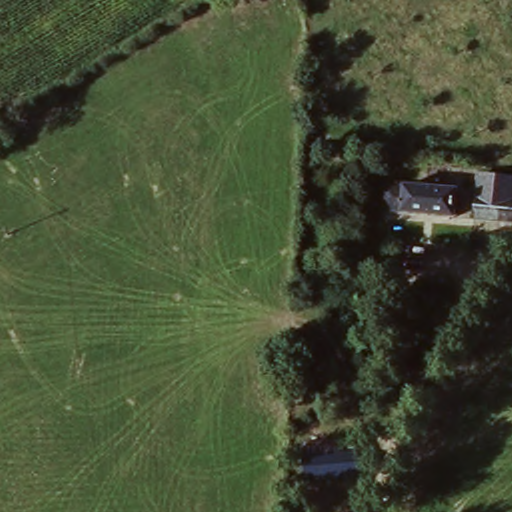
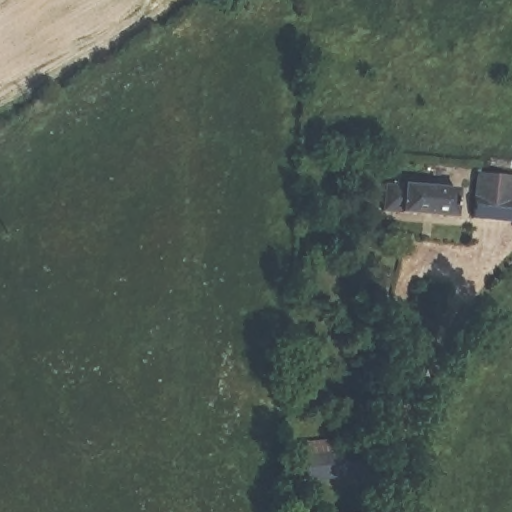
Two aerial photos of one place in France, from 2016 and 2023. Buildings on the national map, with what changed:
unchanged [(512,177),(512,200),(475,197),(477,175),(512,177)]
unchanged [(397,212),(380,211),(382,184),(451,190),(449,217),(397,212)]
unchanged [(475,197),(512,200),(512,221),(473,217),(475,197)]
unchanged [(340,453),(340,446),(353,446),(355,476),(299,479),(298,455),(340,453)]

